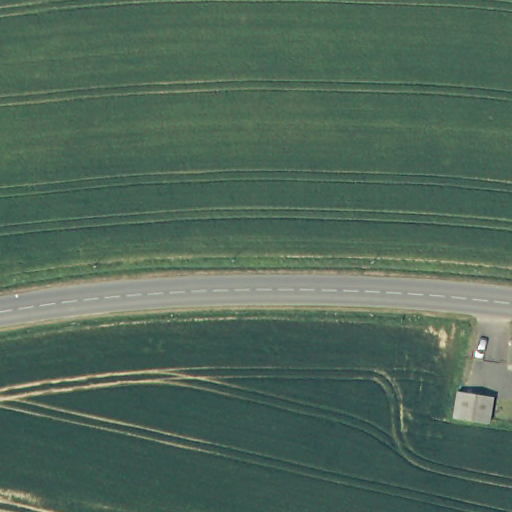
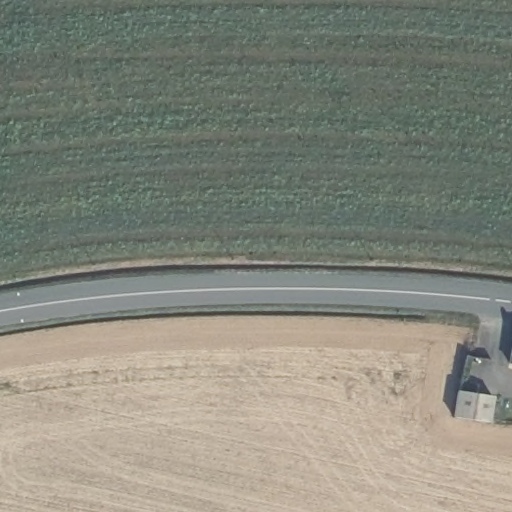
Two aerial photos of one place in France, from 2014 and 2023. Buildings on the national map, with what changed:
unchanged [(512,349),(512,364),(510,363),(512,349)]
unchanged [(457,396),(490,400),(487,419),(487,426),(454,421),(454,413),(457,396)]

